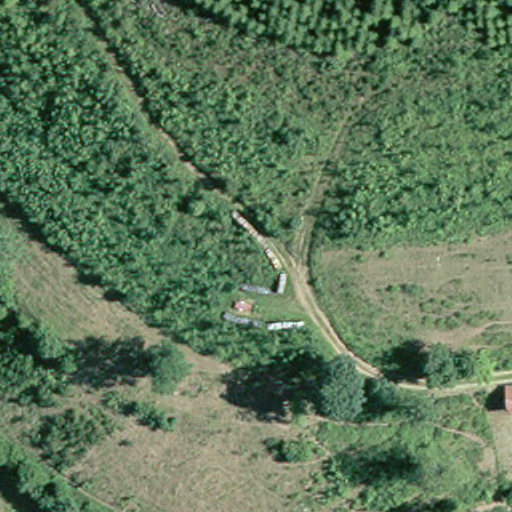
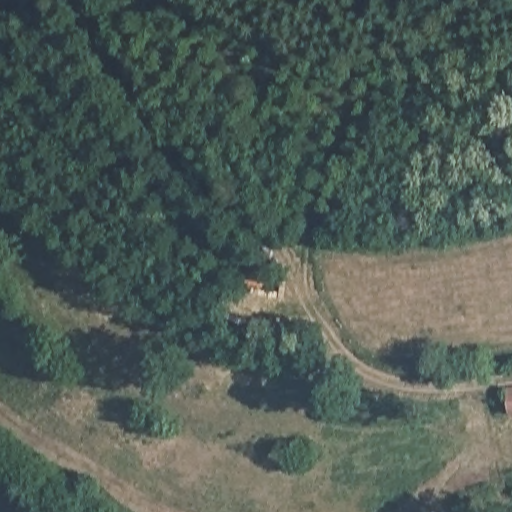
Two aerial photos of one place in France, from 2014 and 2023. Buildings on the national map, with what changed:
unchanged [(512,393),(512,400),(511,393),(512,393)]

